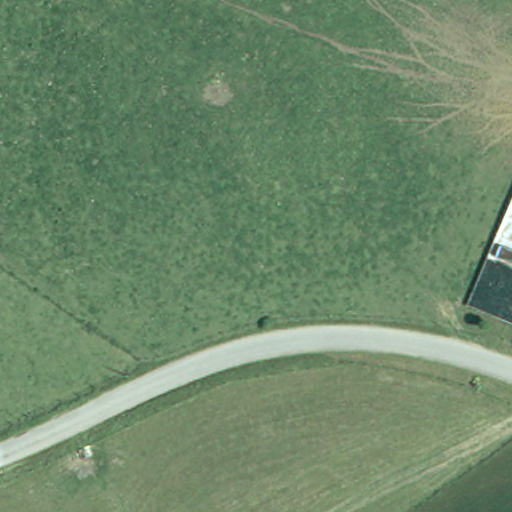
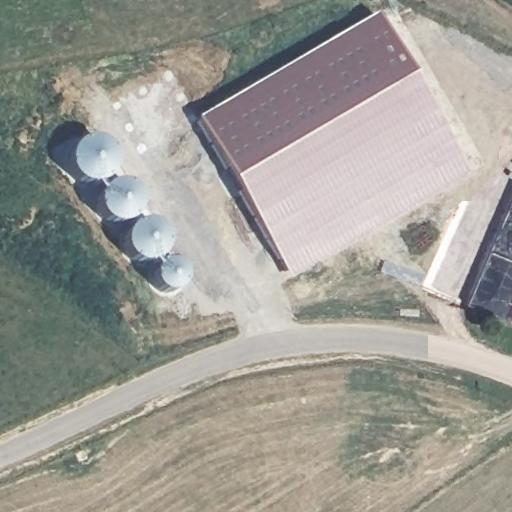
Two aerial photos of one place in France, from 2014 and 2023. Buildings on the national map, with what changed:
new [(378,17),(459,159),(278,261),(198,119),(378,17)]

